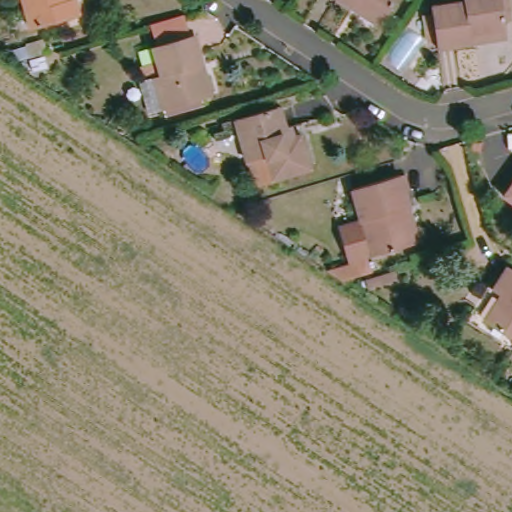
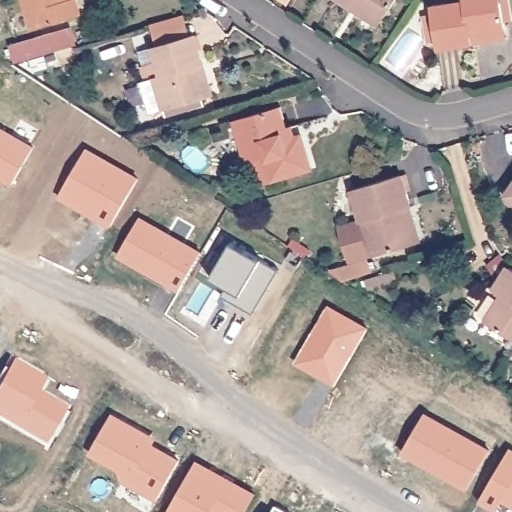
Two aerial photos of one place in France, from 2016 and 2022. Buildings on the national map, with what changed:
unchanged [(38,32),(29,0),(72,0),(73,2),(81,2),(85,19),(38,32)]
unchanged [(385,24),(361,8),(355,14),(335,0),(400,0),(385,24)]
unchanged [(475,32),(475,43),(441,46),(435,4),(465,1),(465,0),(505,0),(508,28),(475,32)]
unchanged [(215,69),(207,71),(214,102),(172,112),(165,80),(155,82),(150,63),(165,60),(164,48),(206,37),(215,69)]
unchanged [(289,139),(306,135),(316,170),(277,181),(271,157),(251,162),(240,119),(281,107),(289,139)]
new [(33,147),(11,184),(0,177),(0,128),(33,147)]
new [(87,149),(137,179),(110,227),(60,196),(87,149)]
unchanged [(422,207),(414,209),(424,245),(381,257),(361,189),(412,174),(422,207)]
unchanged [(512,193),(512,203),(507,199),(512,193)]
new [(140,217),(200,252),(178,290),(117,254),(140,217)]
new [(210,277),(230,241),(278,269),(252,313),(234,302),(221,295),(226,286),(210,277)]
unchanged [(507,298),(496,292),(512,269),(512,341),(488,327),(507,298)]
new [(330,307),(366,329),(334,385),(297,362),(330,307)]
new [(0,415),(0,383),(13,361),(45,379),(38,392),(66,408),(47,442),(0,415)]
new [(111,413),(148,433),(144,440),(178,460),(156,497),(123,479),(120,468),(90,451),(111,413)]
new [(425,413),(488,450),(465,489),(402,452),(425,413)]
new [(512,450),(512,505),(501,498),(495,509),(478,500),(508,448),(512,450)]
new [(254,495),(245,512),(168,512),(196,462),(254,495)]
new [(290,512),(271,512),(275,504),(290,512)]

